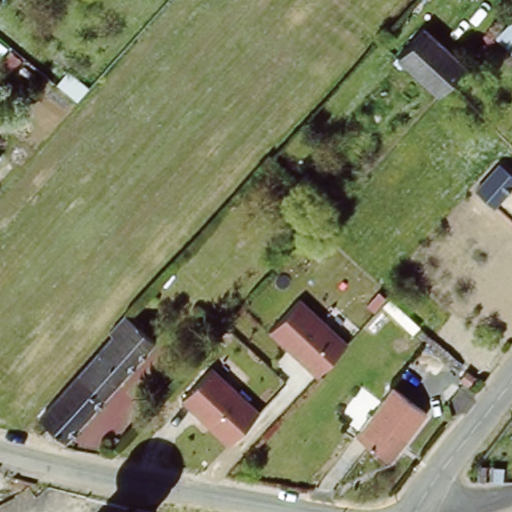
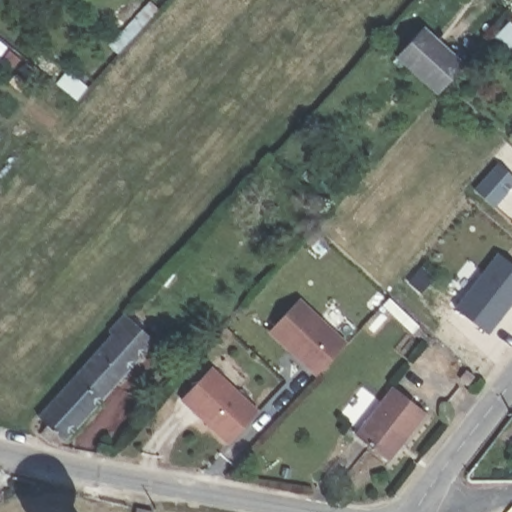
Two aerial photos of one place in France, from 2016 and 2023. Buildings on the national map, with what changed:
unchanged [(512,12),(512,19),(509,16),(512,12)]
unchanged [(512,20),(512,57),(494,39),(512,20)]
unchanged [(396,63),(427,32),(464,69),(445,89),(437,100),(396,63)]
unchanged [(512,179),(512,195),(496,212),(480,197),(504,171),(512,179)]
new [(512,265),(512,304),(489,334),(455,308),(499,255),(512,265)]
unchanged [(300,296),(348,340),(317,375),(269,329),(300,296)]
unchanged [(64,443),(54,433),(50,438),(40,429),(49,421),(40,414),(115,333),(112,329),(129,311),(159,339),(64,443)]
unchanged [(260,409),(230,443),(182,398),(212,365),(260,409)]
unchanged [(395,385),(427,413),(389,459),(357,431),(395,385)]

